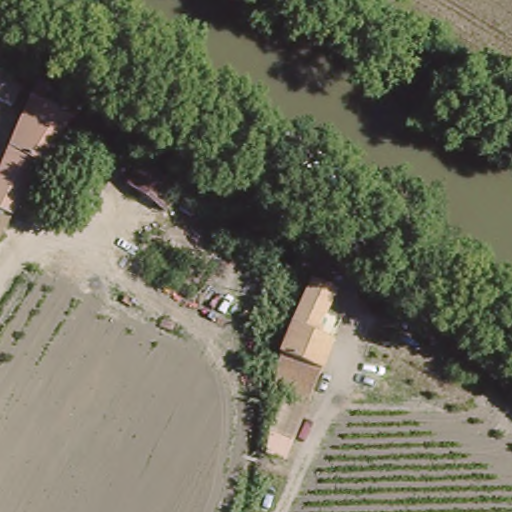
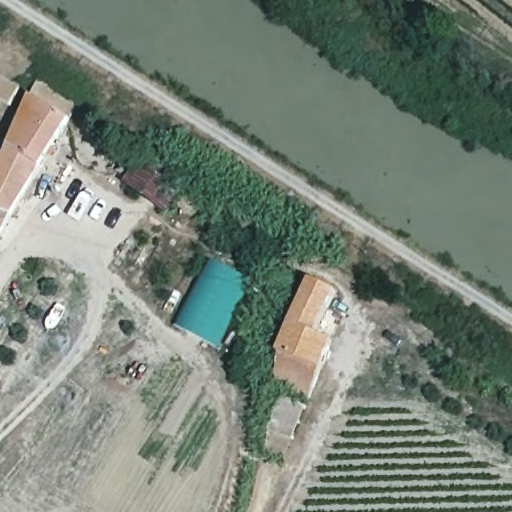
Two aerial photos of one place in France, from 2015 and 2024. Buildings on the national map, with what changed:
unchanged [(10,86),(0,101),(0,80),(10,86)]
unchanged [(60,116),(10,212),(0,207),(0,164),(28,96),(60,116)]
unchanged [(115,185),(133,158),(183,192),(165,219),(115,185)]
new [(209,259),(251,280),(218,345),(174,325),(209,259)]
unchanged [(302,302),(312,282),(338,294),(329,315),(319,337),(333,345),(320,375),(281,357),(292,324),(302,302)]
unchanged [(281,357),(320,375),(306,402),(275,388),(281,357)]
new [(307,406),(284,460),(266,452),(269,429),(270,426),(281,396),(307,406)]

